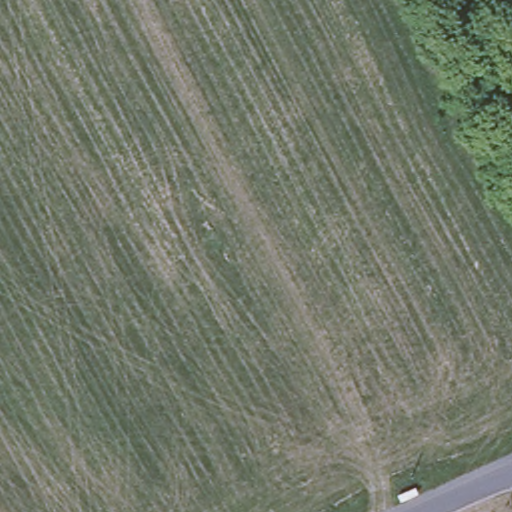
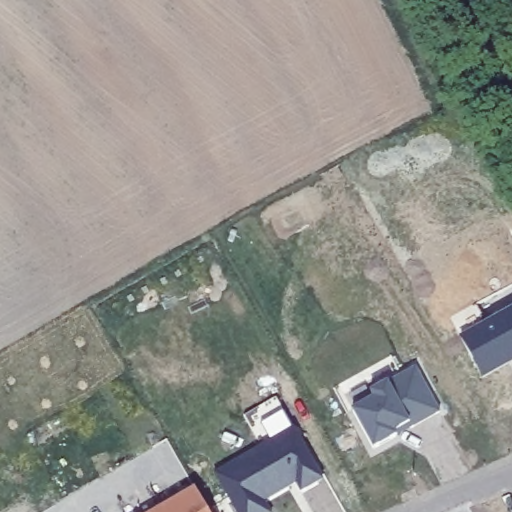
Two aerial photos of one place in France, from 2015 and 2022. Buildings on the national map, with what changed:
new [(440,412),(396,436),(373,448),(350,409),(373,397),(369,390),(387,381),(415,367),(440,412)]
new [(325,479),(300,493),(295,483),(265,500),(272,512),(236,512),(213,473),(293,427),(325,479)]
new [(171,497),(175,502),(192,492),(203,512),(145,512),(171,497)]

